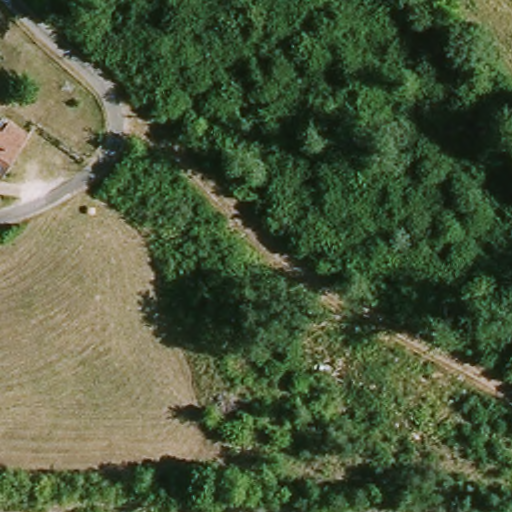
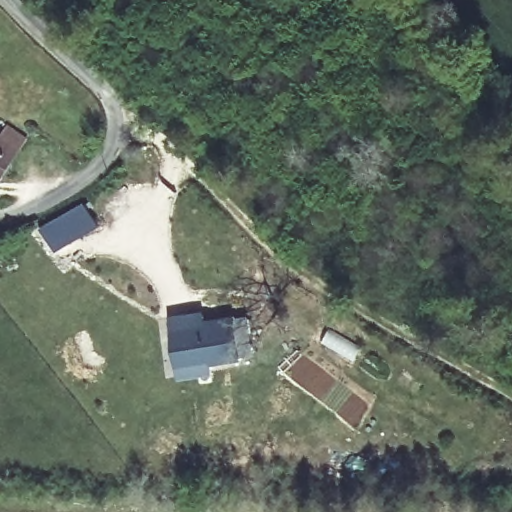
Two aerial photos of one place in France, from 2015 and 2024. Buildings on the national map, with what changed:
unchanged [(0,176),(0,138),(6,141),(19,151),(0,176)]
new [(101,225),(57,249),(43,225),(86,201),(101,225)]
new [(172,315),(203,309),(205,318),(247,312),(253,355),(212,363),(213,372),(180,377),(172,315)]

